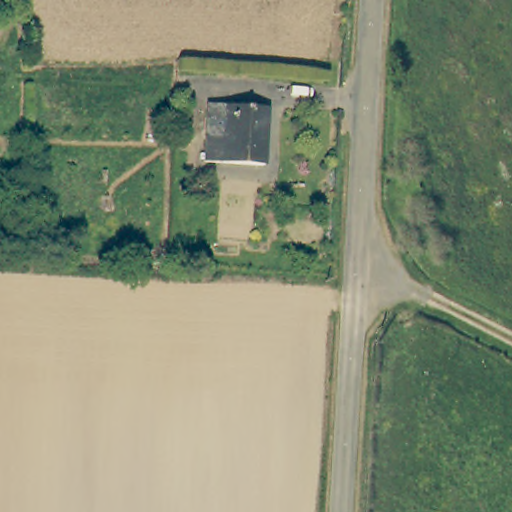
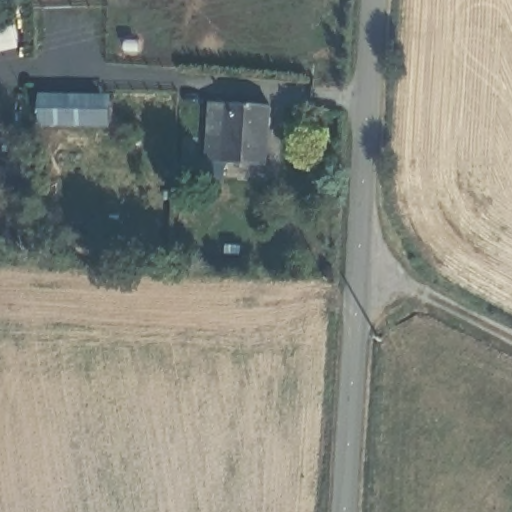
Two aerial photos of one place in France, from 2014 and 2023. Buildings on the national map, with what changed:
new [(0,24),(12,21),(20,48),(0,53),(0,24)]
new [(108,128),(36,126),(37,95),(109,95),(108,128)]
unchanged [(270,106),(267,163),(207,162),(210,103),(270,106)]

